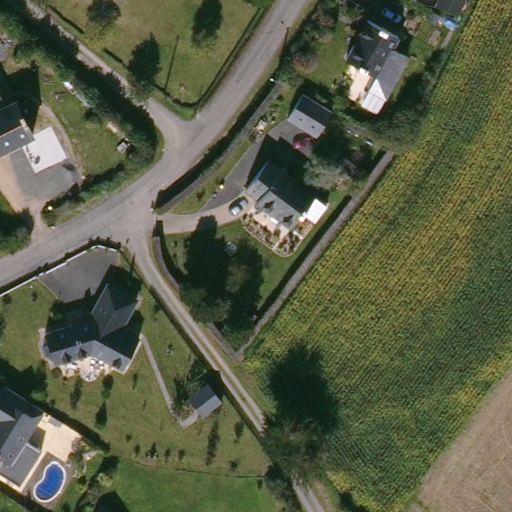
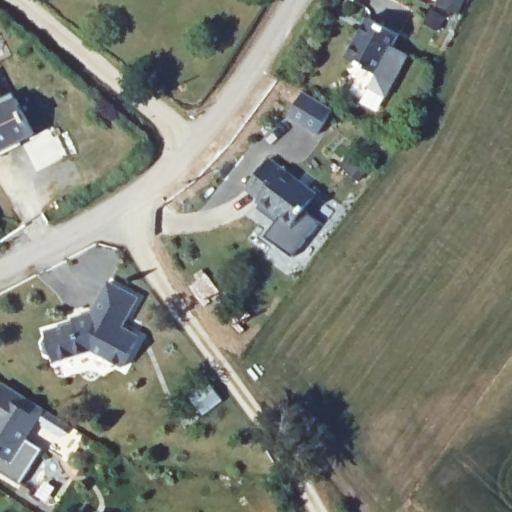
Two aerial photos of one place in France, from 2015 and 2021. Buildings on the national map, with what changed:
unchanged [(368,85),(375,73),(347,57),(368,16),(400,34),(393,45),(408,53),(393,82),(386,95),(368,85)]
unchanged [(303,93),(333,111),(317,137),(286,119),(303,93)]
unchanged [(0,110),(0,96),(5,106),(0,110)]
unchanged [(0,110),(5,106),(15,101),(35,135),(0,154),(0,110)]
unchanged [(263,202),(249,191),(272,161),(320,200),(319,201),(311,211),(328,221),(295,260),(264,235),(278,216),(261,205),(263,202)]
unchanged [(125,328),(142,339),(125,369),(90,347),(88,352),(56,360),(55,355),(48,351),(46,341),(50,335),(48,330),(77,322),(76,318),(94,313),(113,282),(142,300),(125,328)]
unchanged [(0,401),(8,389),(14,393),(19,397),(49,417),(13,469),(0,460),(0,401)]

